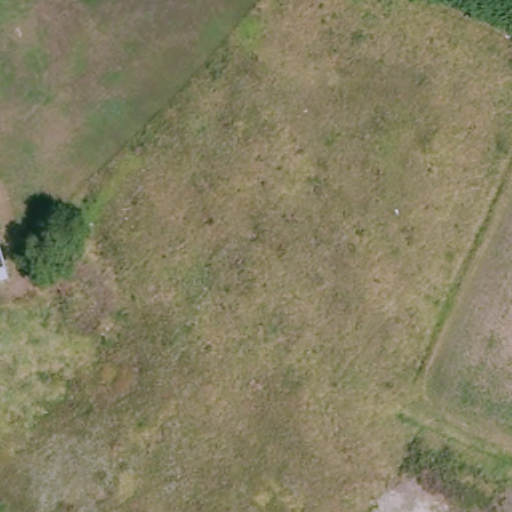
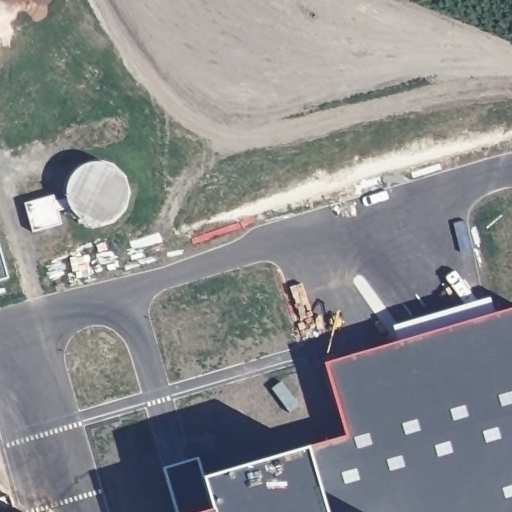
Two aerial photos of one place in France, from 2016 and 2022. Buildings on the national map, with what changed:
unchanged [(0,243),(11,282),(0,285),(0,243)]
new [(168,465),(201,457),(204,478),(347,436),(324,363),(512,310),(512,512),(181,512),(168,465)]

